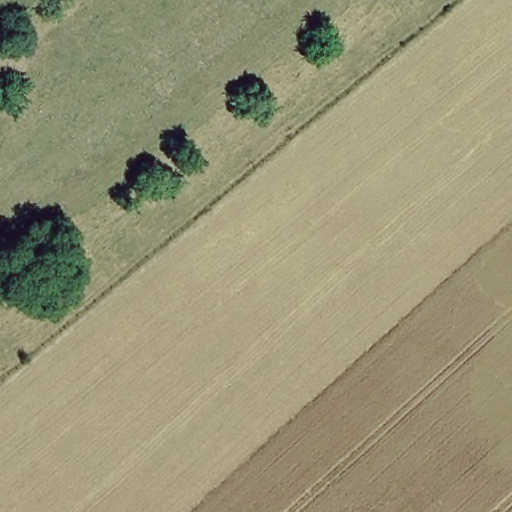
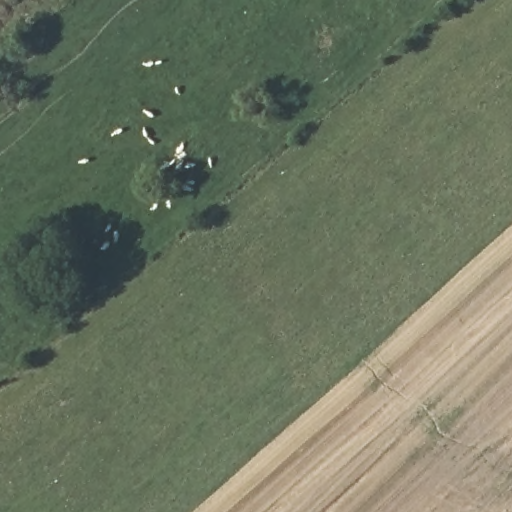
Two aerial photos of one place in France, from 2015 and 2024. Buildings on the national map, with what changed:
[]

